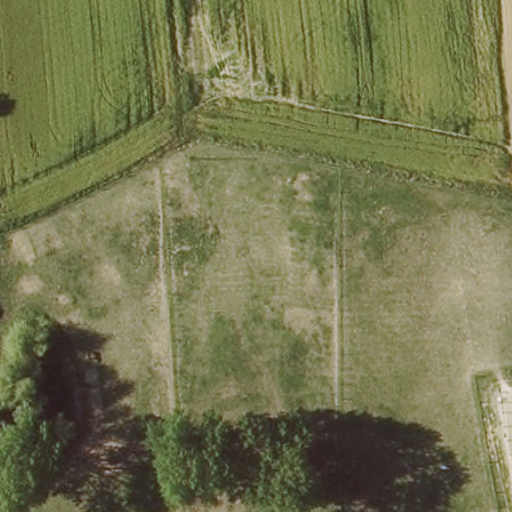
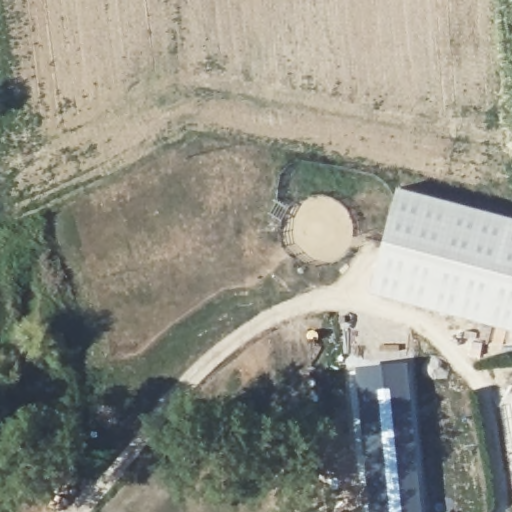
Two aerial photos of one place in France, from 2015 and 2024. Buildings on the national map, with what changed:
new [(398,187),(512,217),(512,330),(372,292),(398,187)]
new [(411,388),(418,435),(419,485),(422,512),(365,512),(355,451),(348,366),(408,360),(411,388)]

